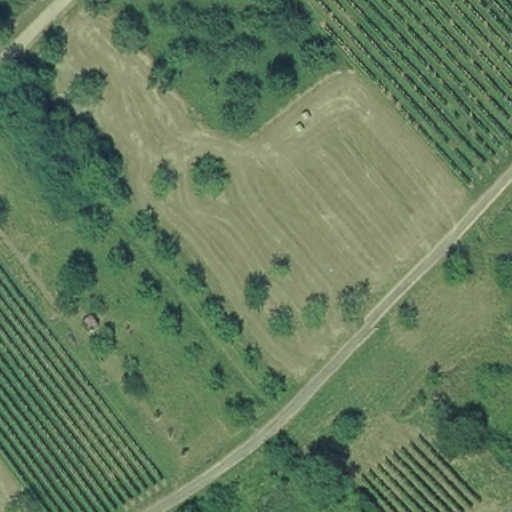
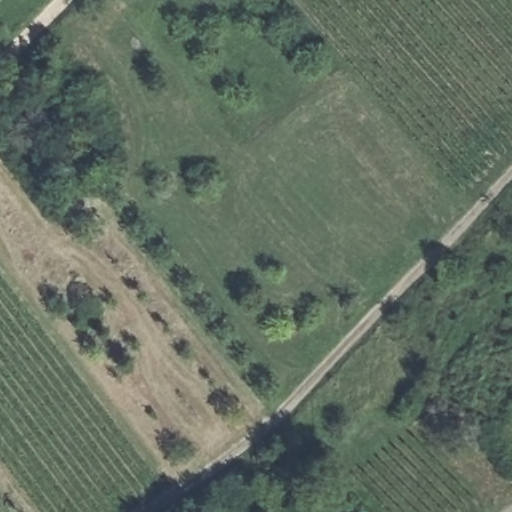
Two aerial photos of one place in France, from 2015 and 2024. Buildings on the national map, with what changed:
[]

